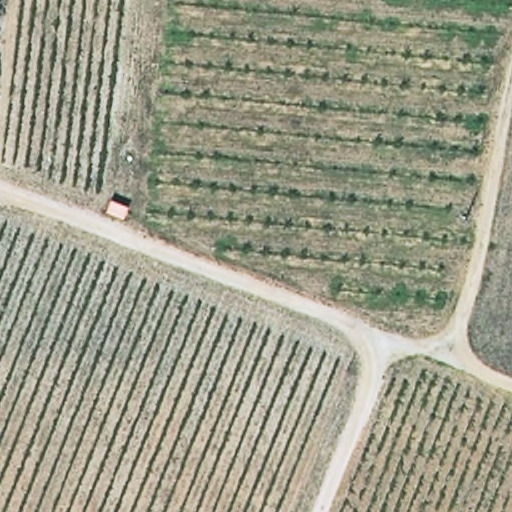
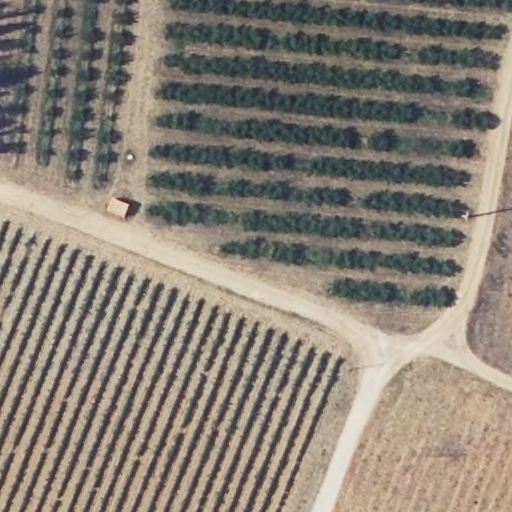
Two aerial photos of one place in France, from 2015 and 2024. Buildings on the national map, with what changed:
unchanged [(126,199),(123,210),(106,205),(109,192),(126,199)]

